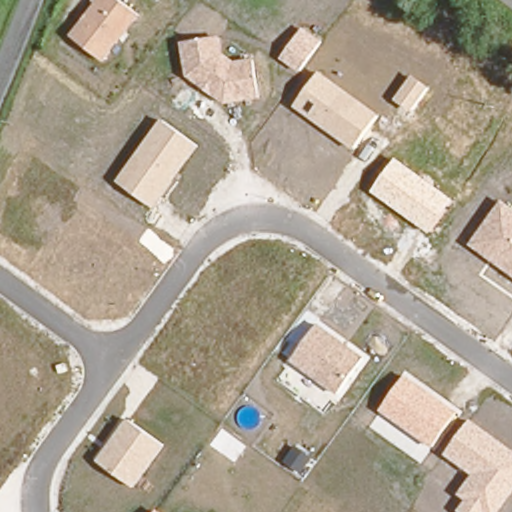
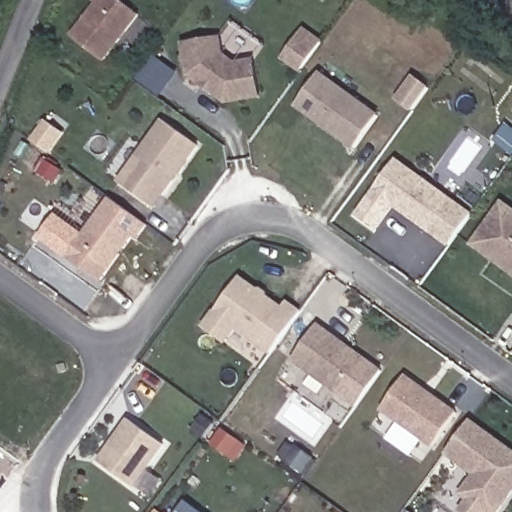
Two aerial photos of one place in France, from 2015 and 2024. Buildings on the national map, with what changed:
unchanged [(72,35),(96,6),(92,2),(94,0),(121,0),(141,15),(105,62),(72,35)]
unchanged [(301,73),(279,58),(304,24),(325,41),(301,73)]
unchanged [(260,99),(224,103),(186,76),(183,42),(224,37),(226,55),(235,60),(256,58),(260,99)]
unchanged [(354,149),(295,106),(321,71),(381,115),(354,149)]
unchanged [(156,208),(118,180),(163,119),(201,145),(156,208)]
unchanged [(430,233),(372,191),(398,156),(455,200),(430,233)]
new [(136,241),(133,238),(102,283),(65,256),(108,197),(148,226),(136,241)]
unchanged [(502,201),(512,208),(512,275),(469,244),(502,201)]
new [(270,352),(238,330),(225,344),(203,326),(242,275),(282,304),(285,300),(300,309),(270,352)]
unchanged [(338,395),(289,359),(318,322),(365,357),(338,395)]
unchanged [(433,446),(381,410),(406,376),(457,412),(433,446)]
unchanged [(136,487),(97,460),(126,418),(166,445),(136,487)]
unchanged [(458,512),(457,511),(466,499),(458,493),(471,474),(446,456),(472,419),(512,448),(512,495),(500,512),(458,512)]
unchanged [(161,512),(159,512),(159,511),(161,512)]

